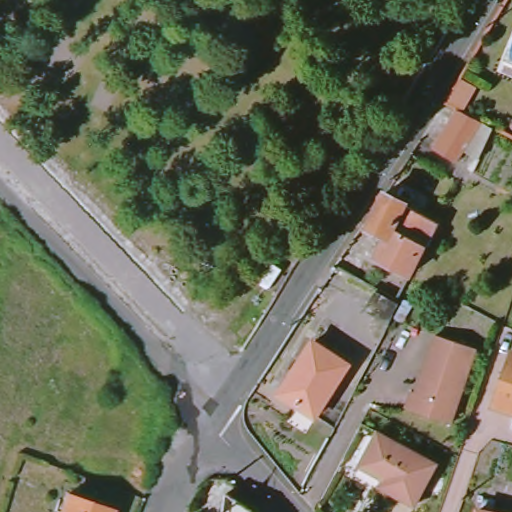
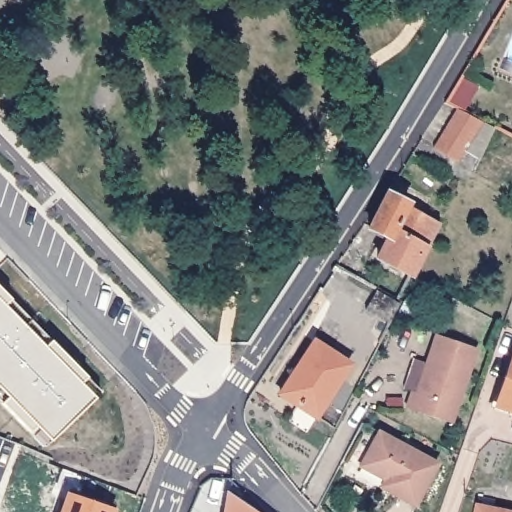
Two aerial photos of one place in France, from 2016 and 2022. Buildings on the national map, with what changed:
unchanged [(459,161),(435,144),(457,107),(447,101),(462,77),(477,86),(464,107),(484,121),(497,128),(484,160),(466,150),(459,161)]
unchanged [(424,246),(420,245),(405,274),(373,257),(382,238),(363,227),(382,194),(404,205),(403,207),(435,223),(424,246)]
new [(11,299),(5,305),(13,314),(46,347),(52,341),(88,378),(82,384),(96,398),(51,440),(36,426),(30,432),(0,403),(7,397),(0,390),(0,288),(11,299)]
unchanged [(401,302),(389,324),(365,309),(376,288),(401,302)]
unchanged [(289,415),(298,400),(280,388),(315,335),(349,358),(306,426),(289,415)]
unchanged [(409,409),(415,391),(418,392),(438,336),(478,349),(453,424),(409,409)]
unchanged [(510,356),(512,356),(512,416),(492,409),(510,356)]
unchanged [(387,490),(390,481),(361,466),(378,432),(438,463),(417,505),(387,490)]
unchanged [(264,512),(226,512),(230,489),(264,512)]
unchanged [(113,510),(112,512),(61,512),(67,495),(113,510)]
unchanged [(492,512),(478,512),(479,510),(492,512)]

